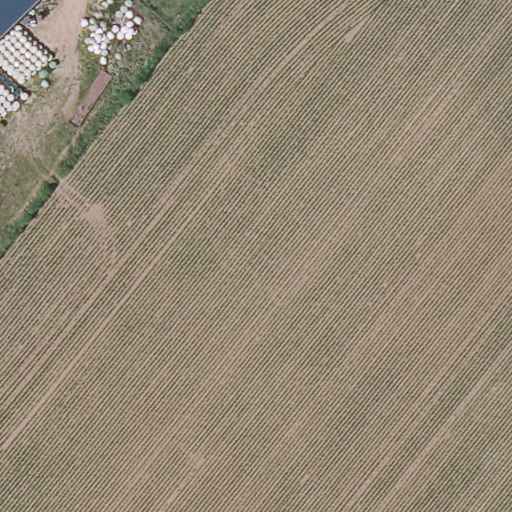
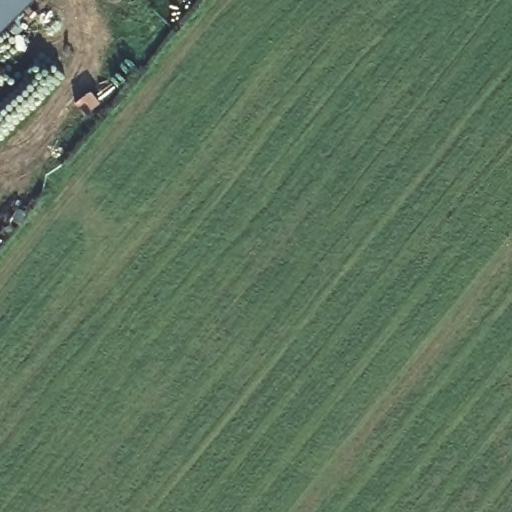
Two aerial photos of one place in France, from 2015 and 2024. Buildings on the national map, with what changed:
unchanged [(36,0),(0,35),(0,0),(36,0)]

